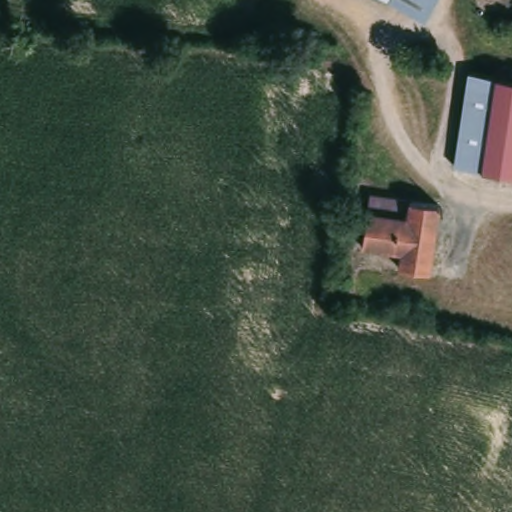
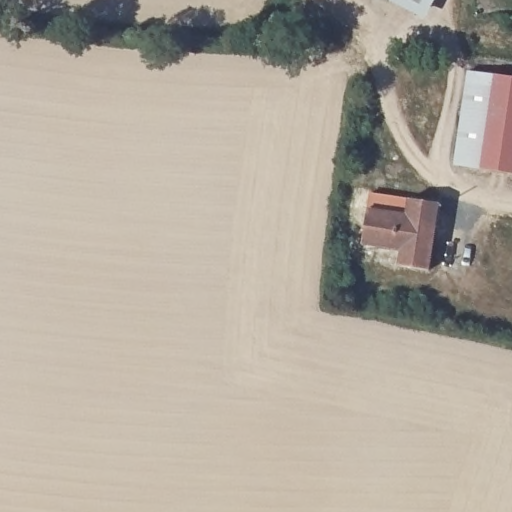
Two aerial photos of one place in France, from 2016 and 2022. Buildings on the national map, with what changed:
unchanged [(418,19),(383,0),(428,0),(418,19)]
unchanged [(449,166),(464,71),(512,79),(512,175),(449,166)]
unchanged [(429,271),(359,261),(369,194),(439,204),(429,271)]
unchanged [(346,307),(331,305),(335,273),(350,275),(346,307)]

